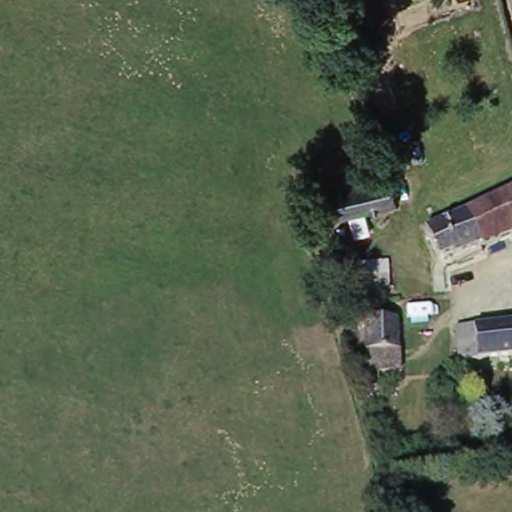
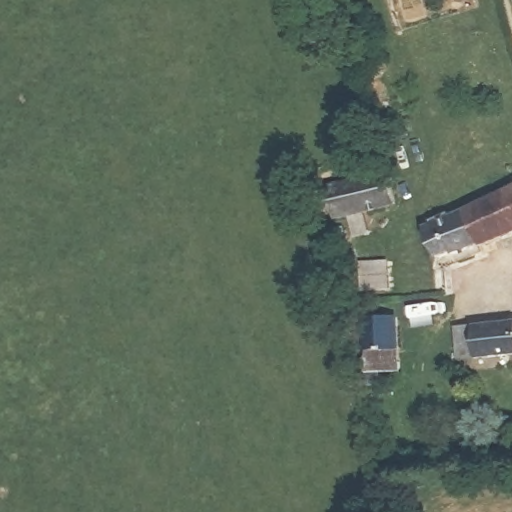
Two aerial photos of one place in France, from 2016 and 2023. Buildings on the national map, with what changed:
unchanged [(386,177),(395,211),(338,225),(327,193),(386,177)]
unchanged [(458,263),(456,258),(442,265),(429,233),(512,196),(512,238),(458,263)]
unchanged [(399,324),(399,355),(391,355),(392,367),(380,367),(379,355),(369,355),(369,324),(399,324)]
unchanged [(512,327),(512,360),(468,365),(464,332),(512,327)]

